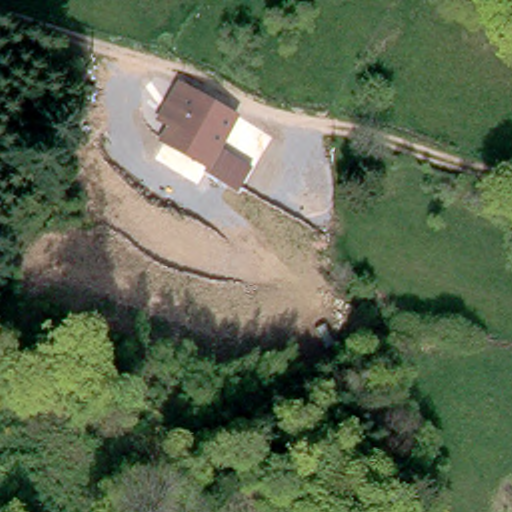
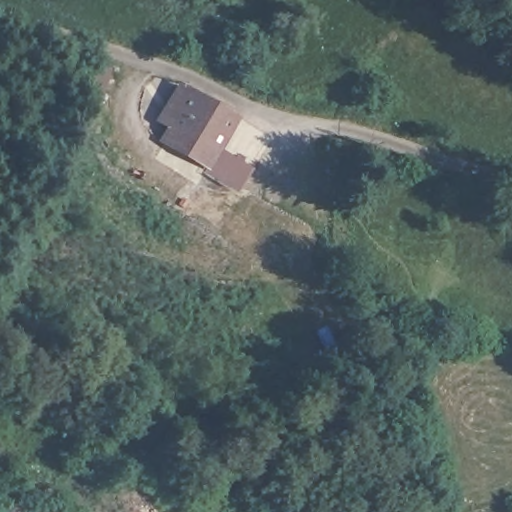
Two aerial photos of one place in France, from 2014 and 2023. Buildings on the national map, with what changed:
unchanged [(178,84),(236,116),(223,150),(238,160),(232,183),(156,142),(166,127),(155,120),(178,84)]

